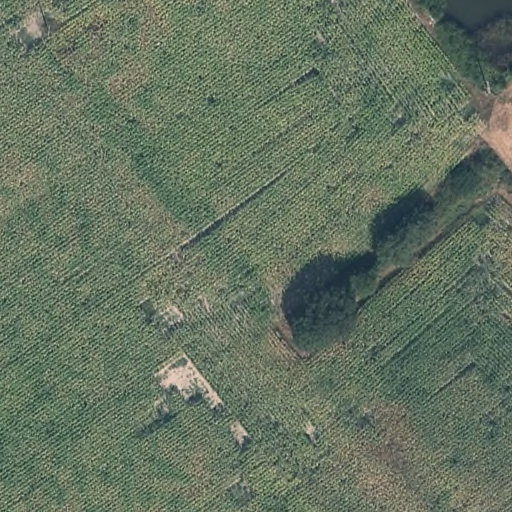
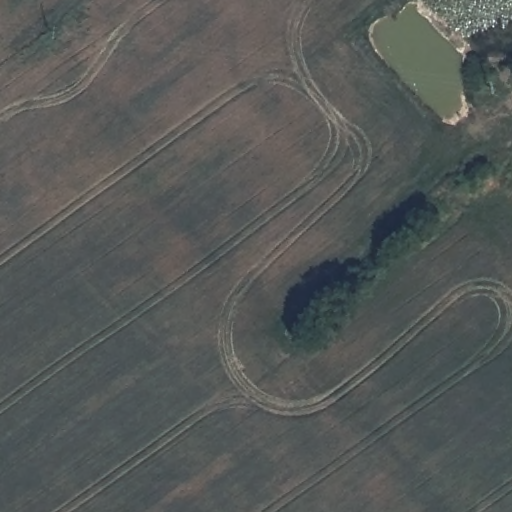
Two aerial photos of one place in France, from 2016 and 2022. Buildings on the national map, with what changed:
[]

